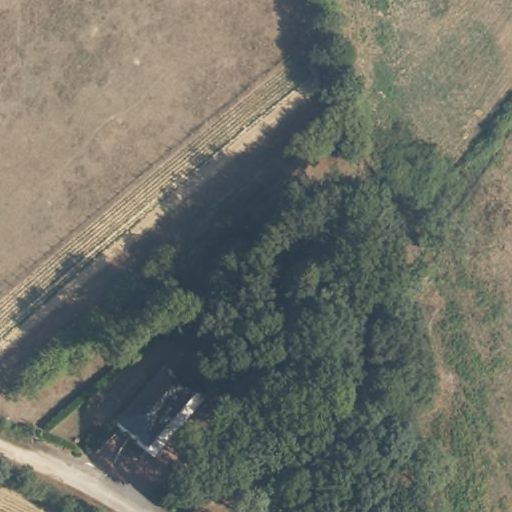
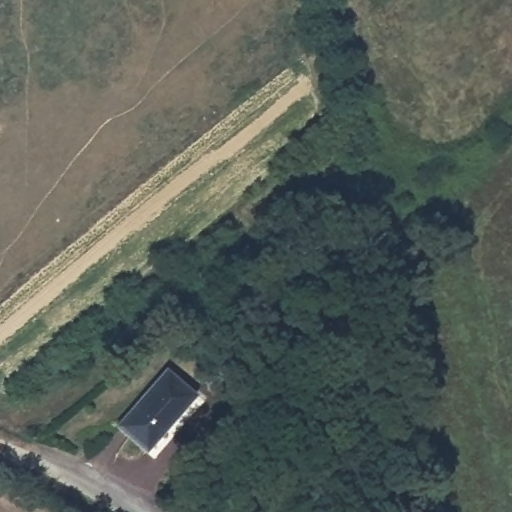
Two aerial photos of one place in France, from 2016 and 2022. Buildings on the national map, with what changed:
unchanged [(193,393),(147,446),(117,420),(164,367),(193,393)]
unchanged [(375,431),(346,430),(345,374),(373,374),(375,431)]

